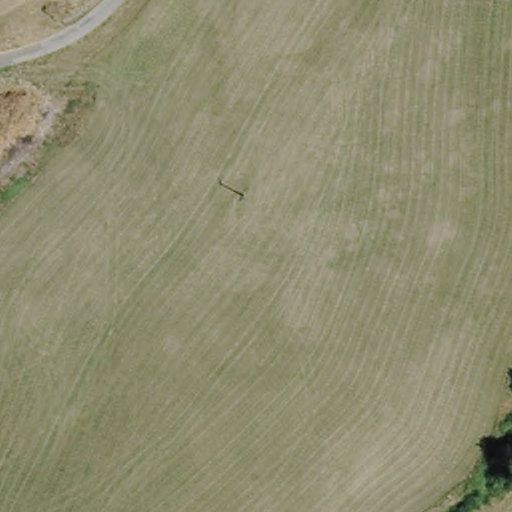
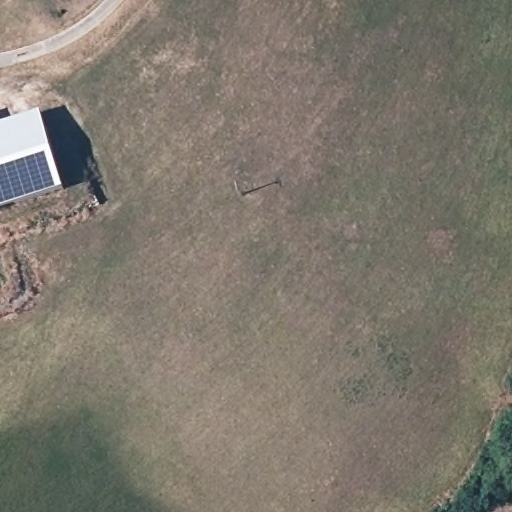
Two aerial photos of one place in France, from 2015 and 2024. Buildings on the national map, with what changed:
new [(67,192),(0,212),(0,128),(42,114),(67,192)]

